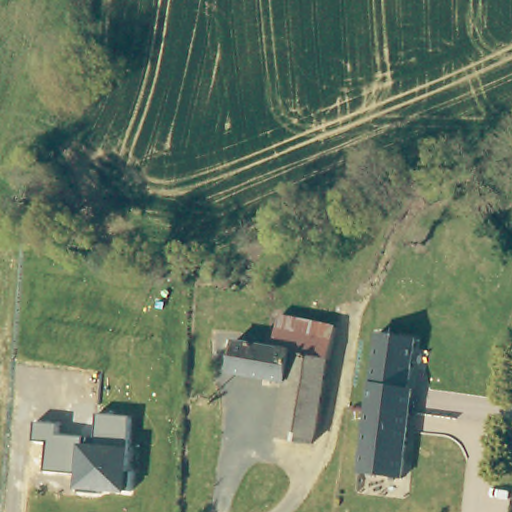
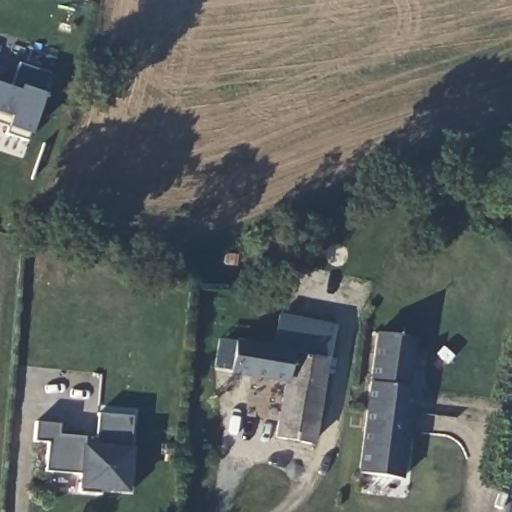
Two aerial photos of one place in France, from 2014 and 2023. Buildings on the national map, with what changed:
new [(20,64),(49,76),(27,140),(4,130),(7,124),(0,122),(0,84),(15,89),(20,64)]
unchanged [(275,346),(282,316),(339,328),(332,359),(275,346)]
unchanged [(378,329),(415,333),(409,383),(414,384),(411,407),(410,407),(370,401),(378,329)]
unchanged [(332,359),(316,446),(316,447),(276,438),(286,386),(230,375),(239,339),(275,346),(332,359)]
unchanged [(403,472),(361,466),(370,401),(410,407),(411,407),(403,472)]
unchanged [(79,490),(80,475),(45,472),(46,442),(35,441),(36,422),(59,425),(57,439),(96,442),(98,415),(134,417),(132,448),(129,493),(79,490)]

